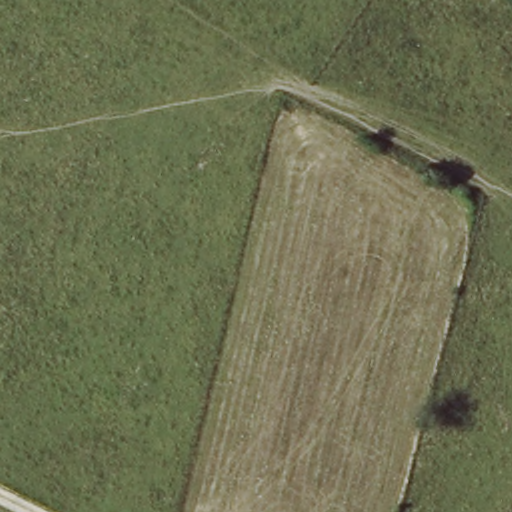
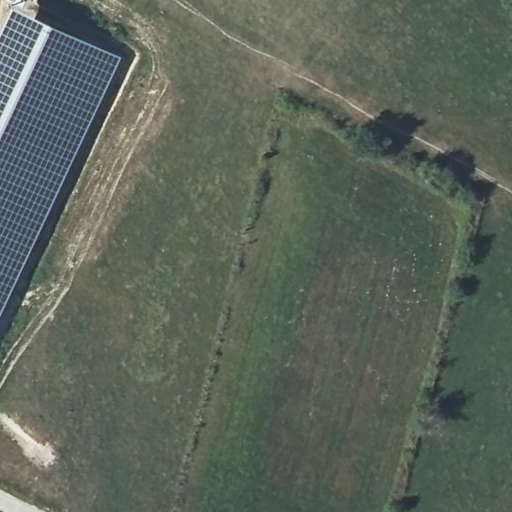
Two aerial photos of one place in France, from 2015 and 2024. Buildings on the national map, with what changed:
new [(8,3),(73,32),(122,56),(0,310),(0,20),(8,3)]

